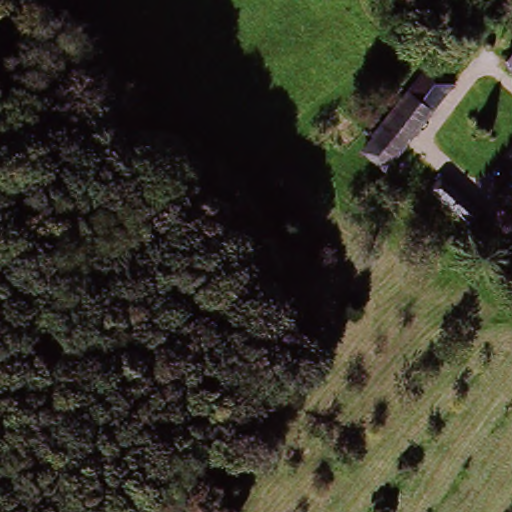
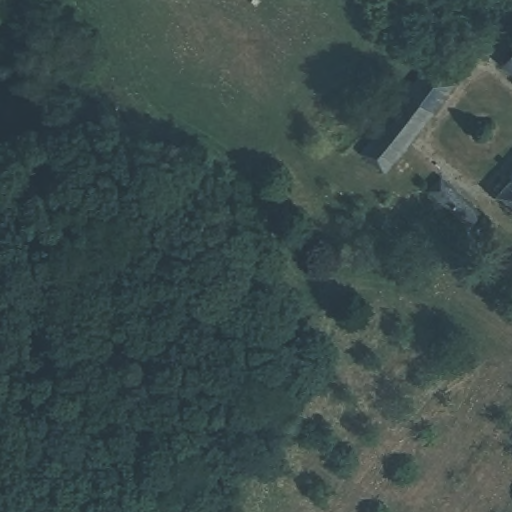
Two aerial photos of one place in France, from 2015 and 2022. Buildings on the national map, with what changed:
unchanged [(441,59),(460,75),(381,171),(361,155),(400,108),(424,80),(441,59)]
unchanged [(442,178),(479,212),(464,229),(427,195),(442,178)]
unchanged [(496,201),(512,183),(512,215),(496,201)]

